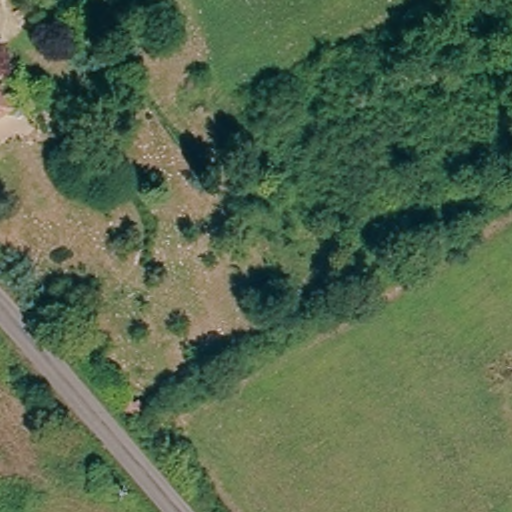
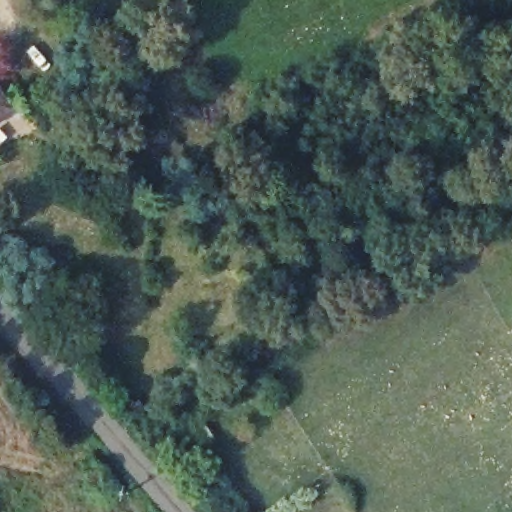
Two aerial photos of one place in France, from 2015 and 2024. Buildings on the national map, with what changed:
unchanged [(14,105),(0,113),(0,83),(14,105)]

